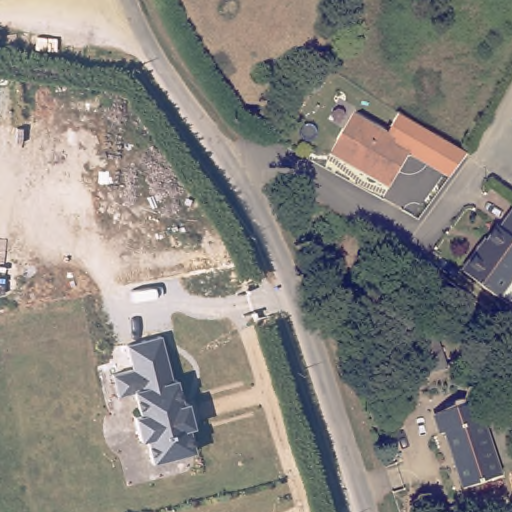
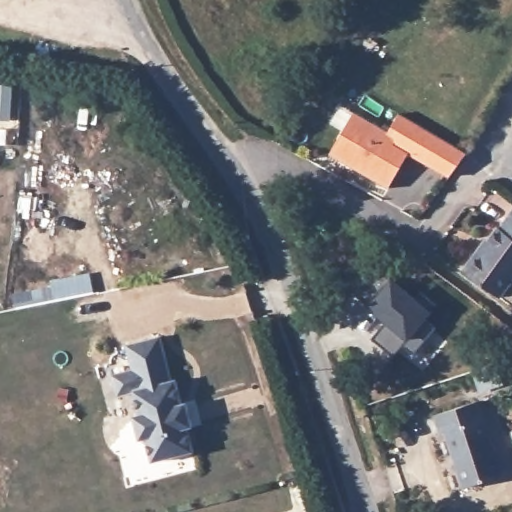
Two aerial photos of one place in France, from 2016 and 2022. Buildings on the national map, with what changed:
unchanged [(336,141),(353,111),(389,130),(399,136),(396,145),(412,155),(393,190),(343,163),(329,154),(336,141)]
unchanged [(468,153),(450,178),(412,155),(396,145),(399,136),(389,130),(400,113),(468,153)]
unchanged [(494,298),(456,269),(471,249),(475,250),(492,229),(496,230),(512,210),(512,273),(494,298)]
new [(418,297),(424,289),(440,302),(428,315),(440,324),(418,352),(407,343),(398,354),(376,337),(390,319),(357,293),(379,265),(418,297)]
new [(16,308),(12,293),(51,284),(50,279),(89,272),(92,292),(16,308)]
demolished [(411,333),(435,327),(447,363),(424,370),(411,333)]
unchanged [(170,380),(176,379),(182,403),(186,402),(192,426),(187,427),(193,451),(151,461),(145,437),(139,439),(132,414),(138,413),(132,389),(116,393),(111,374),(131,369),(131,367),(125,344),(159,335),(167,371),(170,380)]
unchanged [(452,433),(447,434),(442,416),(485,403),(508,476),(470,488),(452,433)]

